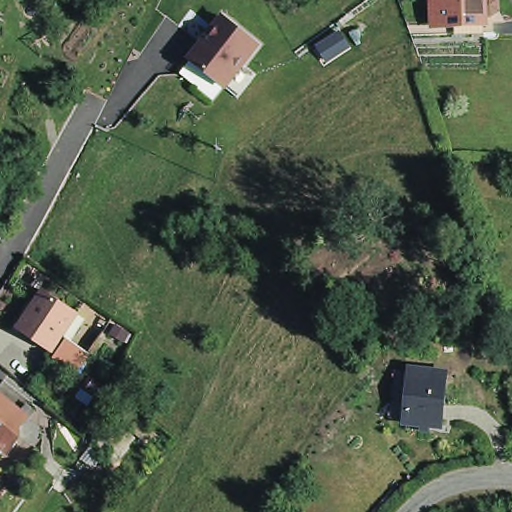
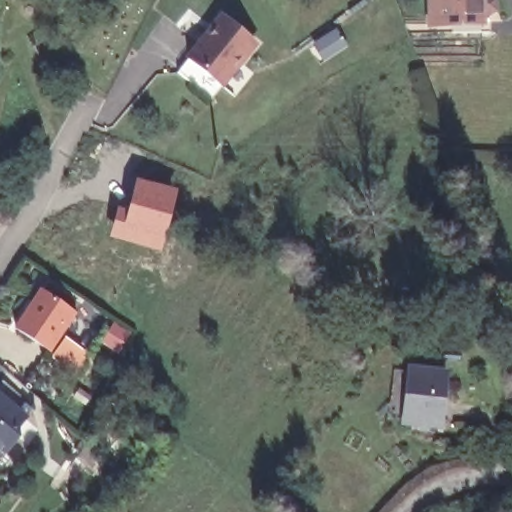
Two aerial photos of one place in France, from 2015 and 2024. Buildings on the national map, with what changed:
unchanged [(485,20),(477,21),(477,28),(426,30),(425,0),(477,0),(477,1),(485,1),(492,5),(492,17),(485,20)]
unchanged [(190,54),(222,14),(259,42),(225,89),(190,54)]
new [(348,47),(321,65),(312,46),(337,30),(348,47)]
new [(117,206),(127,209),(135,178),(178,189),(162,252),(107,238),(117,206)]
unchanged [(15,334),(25,319),(40,296),(77,319),(50,357),(15,334)]
new [(113,321),(134,334),(120,355),(100,342),(113,321)]
unchanged [(422,431),(412,430),(412,424),(400,423),(406,371),(440,374),(434,426),(422,425),(422,431)]
unchanged [(3,436),(5,444),(0,449),(0,407),(17,420),(3,436)]

